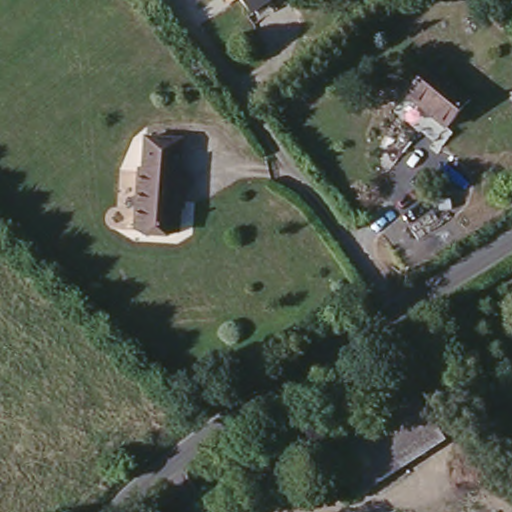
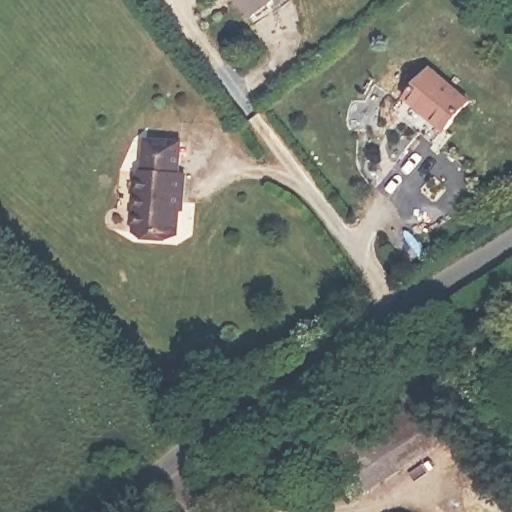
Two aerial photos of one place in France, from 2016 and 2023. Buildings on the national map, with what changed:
unchanged [(259,16),(245,0),(279,0),(259,16)]
unchanged [(433,62),(472,94),(449,122),(438,135),(425,124),(422,127),(397,107),(409,91),(433,62)]
unchanged [(136,234),(139,167),(146,166),(148,138),(183,139),(179,237),(136,234)]
unchanged [(440,423),(354,482),(329,449),(416,392),(440,423)]

